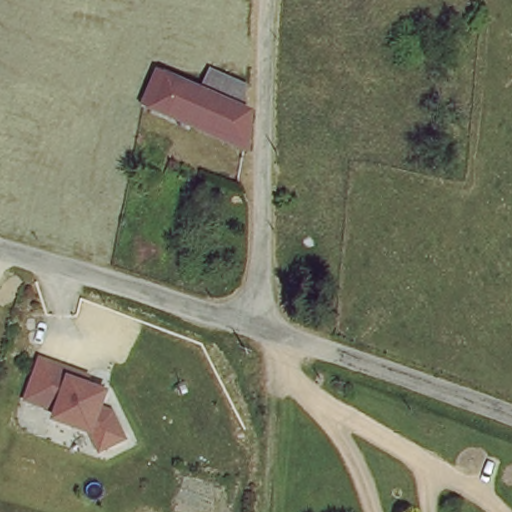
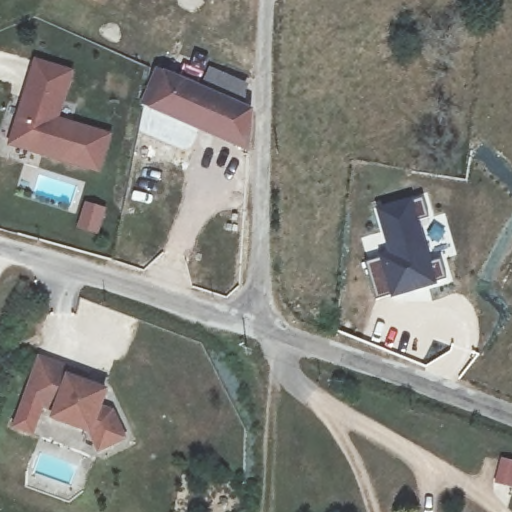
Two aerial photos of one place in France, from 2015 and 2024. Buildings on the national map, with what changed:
new [(33,58),(74,70),(60,118),(113,134),(101,174),(8,145),(33,58)]
unchanged [(247,155),(143,112),(156,80),(218,104),(221,95),(248,105),(248,115),(247,140),(247,155)]
new [(393,297),(392,294),(377,298),(367,263),(390,254),(374,209),(412,198),(414,204),(423,200),(427,217),(417,220),(430,263),(440,261),(445,278),(435,281),(437,285),(393,297)]
unchanged [(73,377),(94,381),(90,398),(103,401),(118,425),(94,440),(84,421),(46,412),(48,405),(16,396),(26,356),(75,368),(73,377)]

